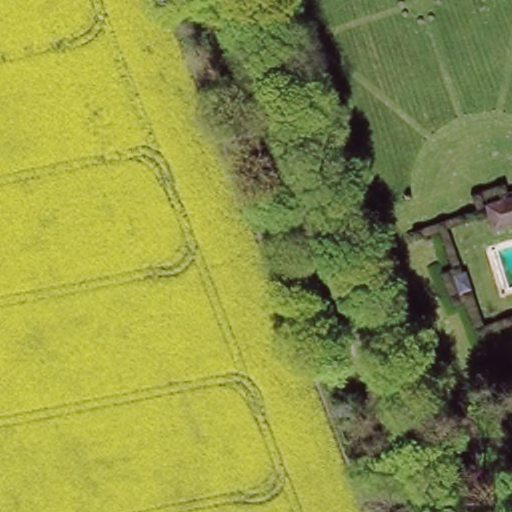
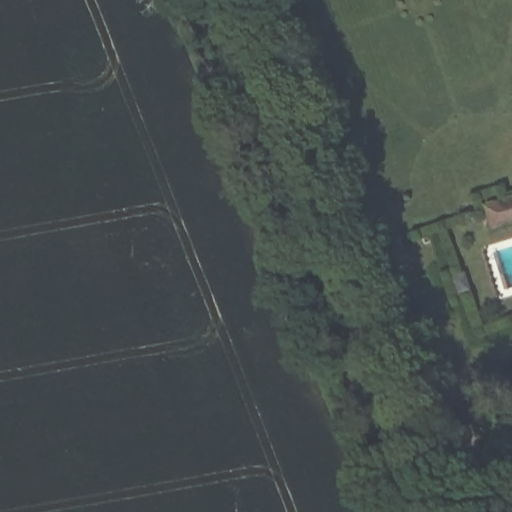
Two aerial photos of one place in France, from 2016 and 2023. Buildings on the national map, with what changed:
unchanged [(512,192),(512,223),(488,231),(478,204),(512,192)]

